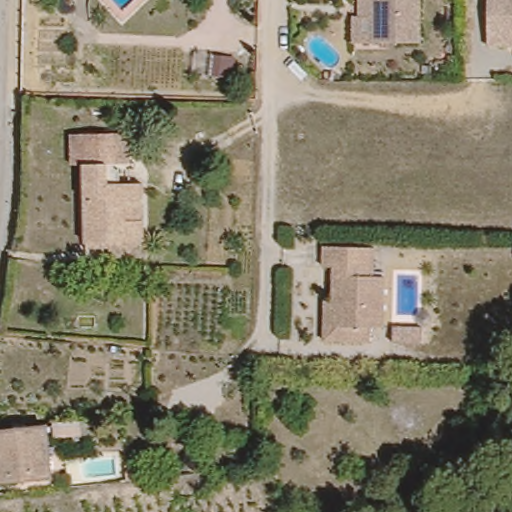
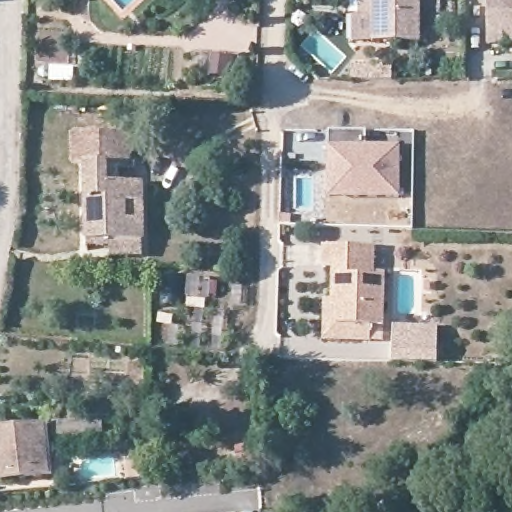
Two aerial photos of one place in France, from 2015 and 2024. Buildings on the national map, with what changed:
unchanged [(420,42),(373,41),(374,0),(421,0),(420,42)]
unchanged [(489,44),(489,0),(512,0),(512,44),(505,44),(489,44)]
unchanged [(237,81),(230,80),(205,79),(205,59),(230,60),(238,61),(237,81)]
new [(352,66),(392,67),(392,82),(352,82),(352,66)]
unchanged [(142,241),(85,240),(87,163),(75,162),(75,130),(134,133),(133,169),(124,169),(123,183),(142,183),(142,204),(142,222),(142,241)]
new [(400,198),(327,199),(328,146),(328,132),(365,130),(367,147),(399,146),(400,198)]
unchanged [(317,344),(318,306),(325,306),(325,270),(315,270),(315,250),(373,250),(373,279),(384,279),(383,329),(372,329),(371,344),(317,344)]
new [(440,327),(438,362),(392,361),(393,326),(440,327)]
unchanged [(55,428),(83,426),(84,435),(55,438),(55,428)]
unchanged [(0,484),(0,435),(38,430),(43,479),(0,484)]
unchanged [(112,468),(134,465),(135,483),(113,485),(112,468)]

